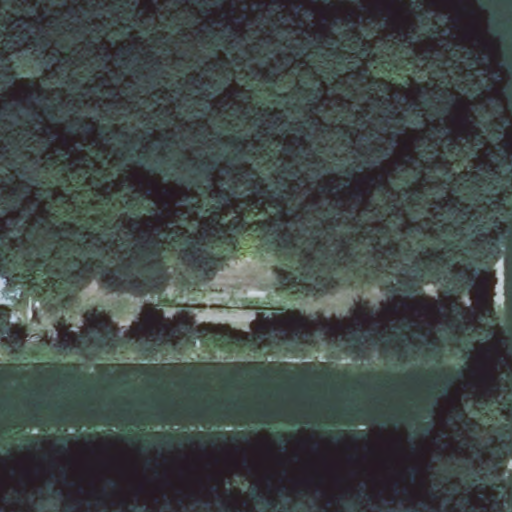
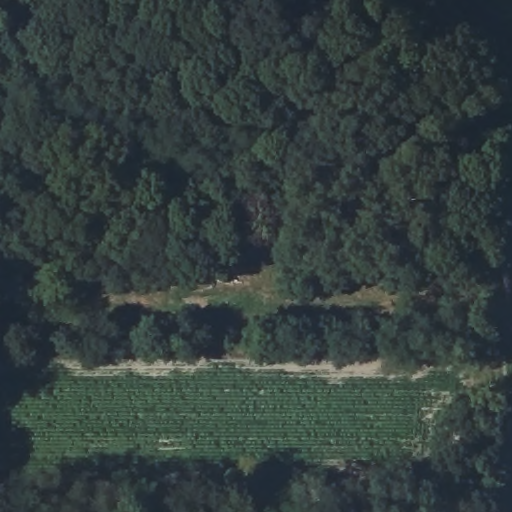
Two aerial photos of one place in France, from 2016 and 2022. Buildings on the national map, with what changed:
unchanged [(0,299),(0,265),(3,265),(3,299),(0,299)]

